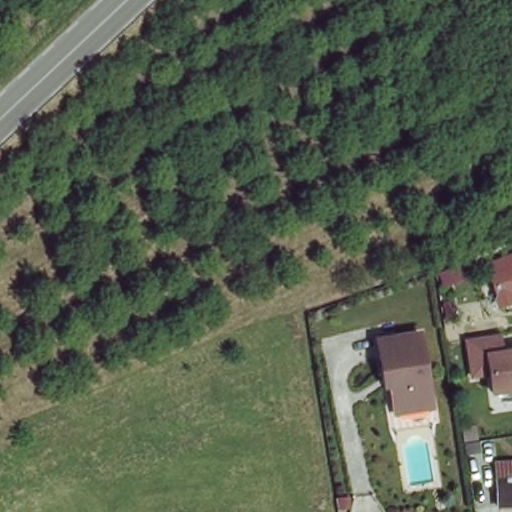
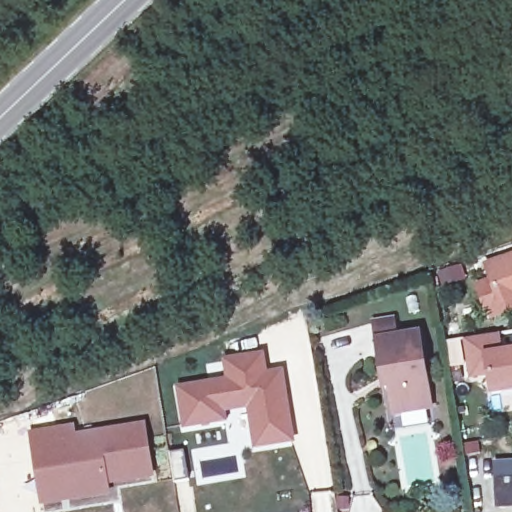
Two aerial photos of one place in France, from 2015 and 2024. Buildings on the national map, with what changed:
unchanged [(496,313),(480,263),(512,253),(512,308),(496,313)]
unchanged [(415,329),(427,403),(390,409),(383,367),(378,367),(373,335),(415,329)]
unchanged [(488,399),(486,379),(467,381),(460,340),(501,333),(505,352),(512,350),(512,395),(488,399)]
new [(225,379),(223,359),(264,352),(267,371),(283,369),(295,445),(253,453),(247,410),(226,412),(227,424),(182,430),(177,387),(225,379)]
new [(75,424),(77,434),(145,422),(155,478),(112,485),(113,495),(40,507),(27,432),(75,424)]
unchanged [(502,509),(498,462),(512,460),(512,508),(502,509)]

